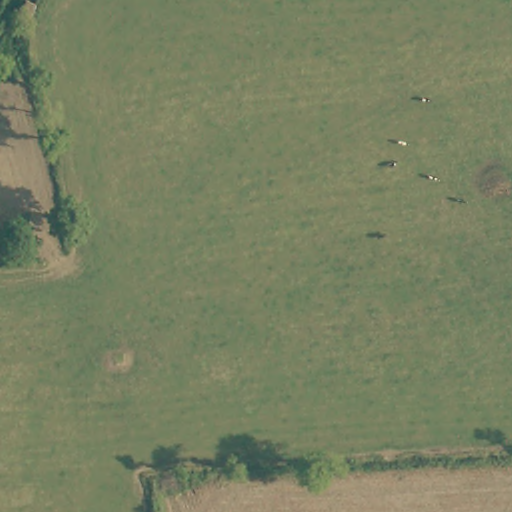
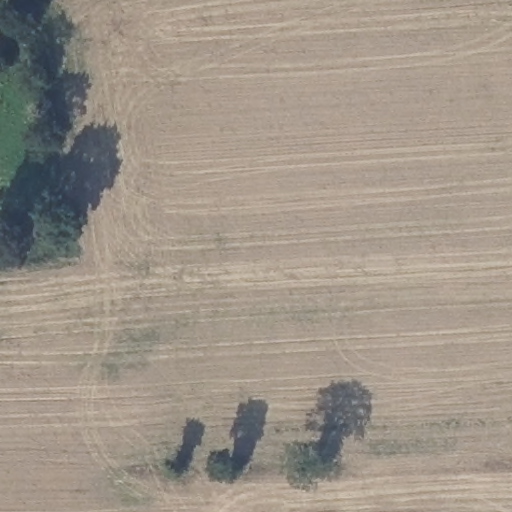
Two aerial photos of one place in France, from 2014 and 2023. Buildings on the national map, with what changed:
[]

